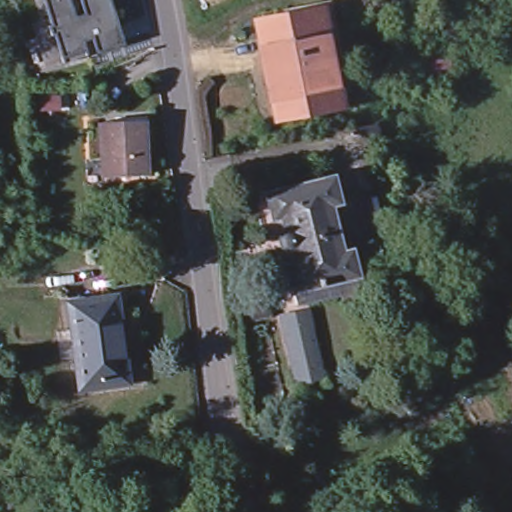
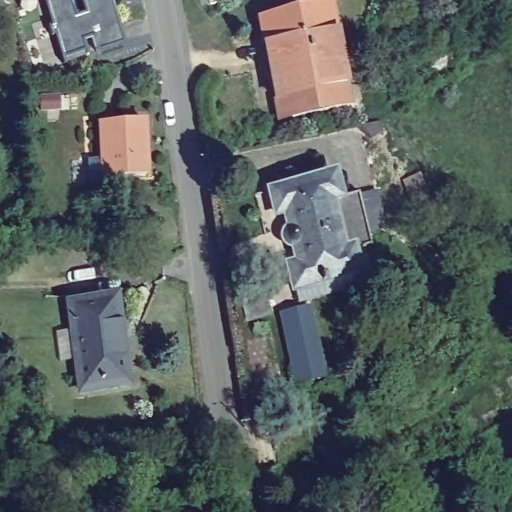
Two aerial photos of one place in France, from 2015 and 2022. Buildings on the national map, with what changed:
unchanged [(98,54),(93,38),(82,42),(86,53),(65,60),(47,0),(69,0),(75,16),(86,12),(82,0),(110,0),(124,46),(98,54)]
unchanged [(322,0),(343,103),(273,117),(252,14),(322,0)]
unchanged [(139,167),(96,170),(93,114),(136,112),(139,167)]
unchanged [(326,201),(346,196),(360,247),(340,254),(346,277),(282,295),(275,272),(285,268),(280,252),(276,251),(272,247),(271,241),(275,235),(271,217),(262,219),(256,196),(275,192),(321,180),(322,182),(326,201)]
unchanged [(77,356),(68,300),(116,292),(125,351),(77,356)]
unchanged [(304,302),(319,373),(290,380),(275,308),(304,302)]
unchanged [(129,378),(82,385),(77,356),(125,351),(129,378)]

